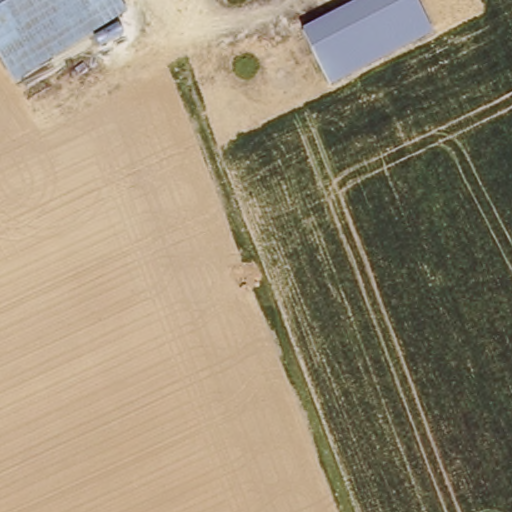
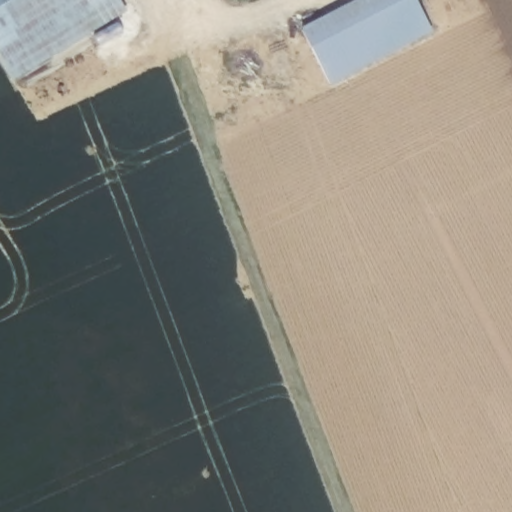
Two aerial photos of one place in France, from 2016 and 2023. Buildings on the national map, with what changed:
unchanged [(7,83),(0,72),(0,0),(111,0),(121,18),(7,83)]
unchanged [(332,82),(304,30),(363,0),(418,0),(435,31),(332,82)]

